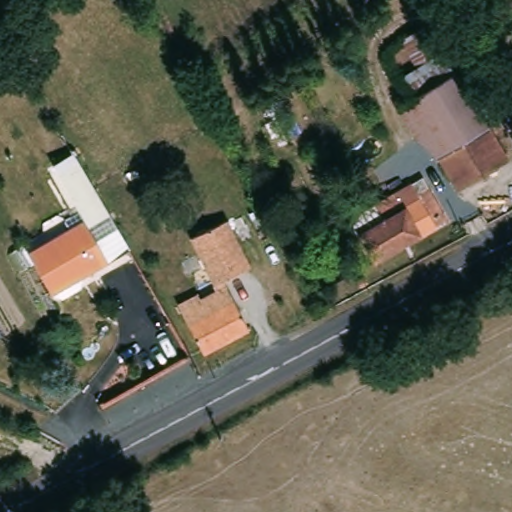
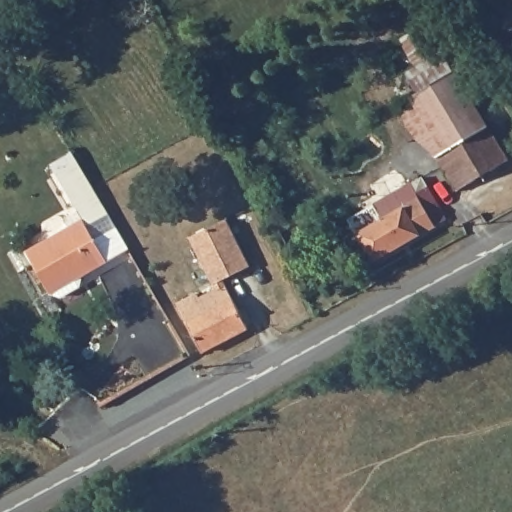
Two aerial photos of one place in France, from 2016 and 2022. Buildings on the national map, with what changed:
unchanged [(414,68),(399,41),(422,26),(438,55),(447,49),(459,72),(404,104),(393,84),(414,68)]
unchanged [(459,72),(511,160),(461,189),(438,149),(422,139),(404,104),(459,72)]
unchanged [(48,285),(47,283),(27,252),(45,241),(82,219),(50,164),(71,152),(110,215),(121,232),(130,247),(109,260),(82,276),(53,293),(48,285)]
unchanged [(382,221),(373,205),(411,183),(414,190),(426,185),(446,219),(374,261),(356,234),(382,221)]
unchanged [(215,287),(205,271),(189,243),(224,222),(232,236),(250,267),(224,282),(252,329),(208,355),(180,308),(215,287)]

